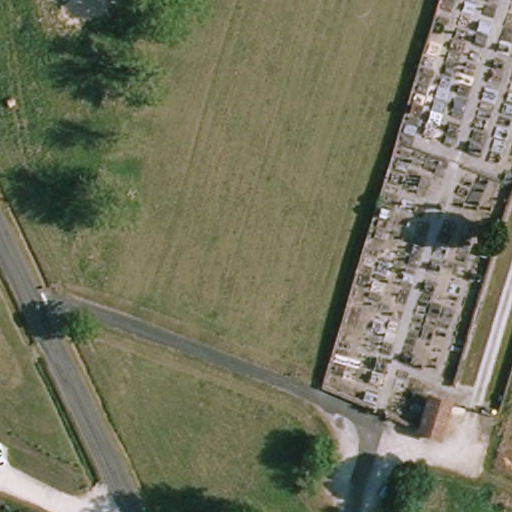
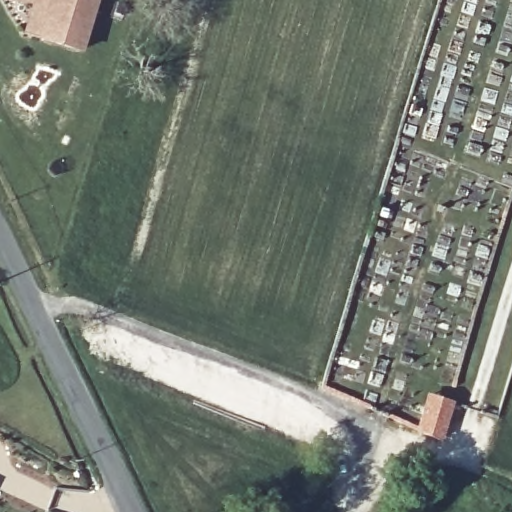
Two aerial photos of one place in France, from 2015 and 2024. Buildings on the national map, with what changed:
new [(83,53),(25,36),(33,6),(11,0),(99,0),(83,53)]
new [(431,395),(453,400),(449,415),(442,438),(422,428),(427,410),(431,395)]

